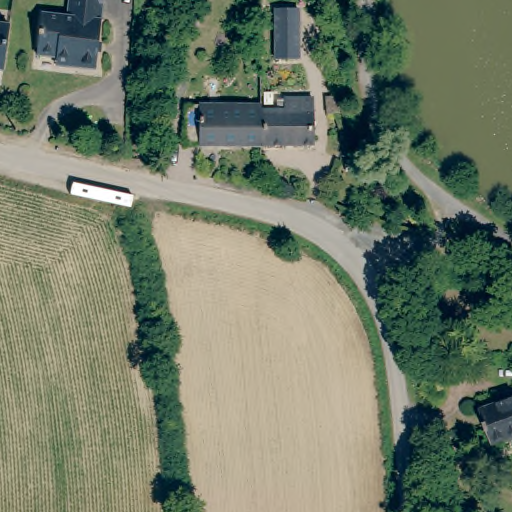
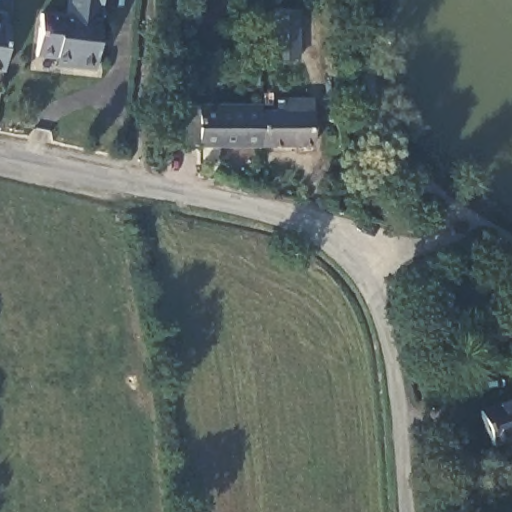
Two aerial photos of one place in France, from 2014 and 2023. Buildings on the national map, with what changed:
unchanged [(63,56),(41,53),(46,12),(72,15),(74,0),(109,0),(102,68),(84,66),(62,64),(63,56)]
unchanged [(277,15),(301,15),(301,65),(277,65),(277,15)]
unchanged [(14,27),(7,71),(0,70),(0,25),(14,27)]
unchanged [(265,102),(265,72),(272,72),(272,102),(265,102)]
unchanged [(297,111),(297,98),(323,97),(325,144),(272,145),(272,112),(297,111)]
unchanged [(196,147),(195,107),(272,105),(272,112),(272,145),(196,147)]
unchanged [(488,408),(512,403),(512,439),(496,442),(488,408)]

